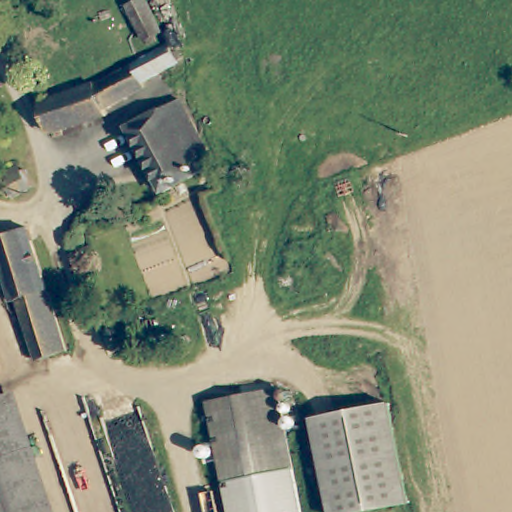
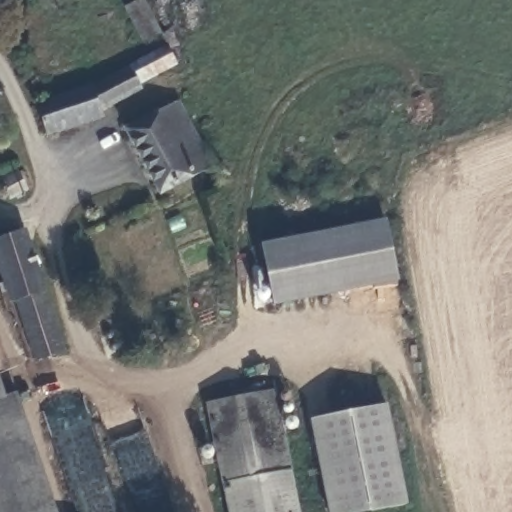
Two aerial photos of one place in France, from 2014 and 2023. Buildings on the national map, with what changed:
new [(146,0),(163,33),(144,43),(125,8),(138,0),(146,0)]
unchanged [(176,58),(160,65),(140,75),(141,84),(102,105),(101,113),(48,130),(38,99),(99,79),(166,39),(176,58)]
unchanged [(213,166),(162,193),(126,126),(177,99),(213,166)]
unchanged [(36,180),(27,184),(6,192),(0,180),(0,177),(10,172),(8,165),(24,156),(36,180)]
new [(386,218),(399,281),(273,305),(261,243),(386,218)]
unchanged [(13,303),(0,255),(0,238),(32,228),(48,294),(21,301),(13,303)]
unchanged [(65,354),(63,354),(38,361),(21,301),(48,294),(65,354)]
unchanged [(44,512),(0,512),(0,386),(44,512)]
unchanged [(217,400),(275,388),(297,512),(236,512),(217,400)]
unchanged [(390,407),(409,505),(370,512),(334,512),(316,421),(390,407)]

